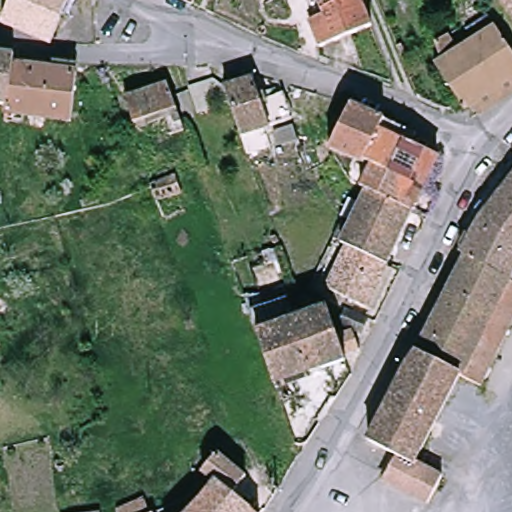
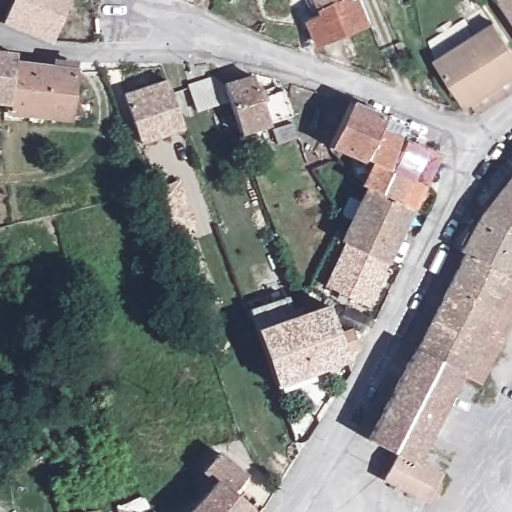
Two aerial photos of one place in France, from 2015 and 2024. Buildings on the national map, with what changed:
unchanged [(4,19),(12,0),(68,0),(52,42),(3,22),(4,19)]
unchanged [(321,7),(317,0),(361,0),(361,1),(370,27),(318,47),(316,41),(308,22),(313,20),(325,15),(321,7)]
unchanged [(512,0),(512,10),(505,0),(512,0)]
unchanged [(459,67),(454,58),(464,50),(470,58),(474,55),(467,44),(488,30),(512,65),(512,99),(470,127),(438,81),(459,67)]
unchanged [(17,54),(15,62),(10,105),(0,104),(0,52),(17,54)]
unchanged [(70,122),(8,115),(10,105),(15,62),(77,70),(70,122)]
unchanged [(245,136),(232,101),(201,112),(191,87),(215,79),(227,85),(254,77),(262,97),(285,89),(295,119),(245,136)]
unchanged [(136,121),(127,96),(169,79),(186,125),(172,131),(144,141),(136,121)]
unchanged [(366,168),(361,165),(333,152),(354,104),(383,118),(412,131),(421,135),(415,146),(441,158),(416,213),(390,267),(349,248),(340,245),(353,218),(366,189),(358,186),(366,168)]
unchanged [(301,140),(282,146),(277,133),(296,126),(301,140)]
unchanged [(466,251),(487,210),(512,177),(512,273),(511,275),(466,251)]
unchanged [(158,188),(183,179),(190,197),(165,207),(158,188)]
unchanged [(167,213),(191,203),(194,213),(171,223),(167,213)]
unchanged [(390,267),(369,309),(329,291),(349,248),(390,267)]
unchanged [(512,351),(512,353),(494,388),(489,385),(420,350),(466,251),(511,275),(504,288),(512,293),(512,307),(495,340),(512,351)]
unchanged [(511,275),(512,276),(512,293),(504,288),(511,275)]
unchanged [(360,348),(346,353),(349,360),(278,385),(252,311),(291,297),(298,317),(330,307),(339,334),(354,329),(360,348)]
unchanged [(512,307),(512,351),(495,340),(512,307)]
unchanged [(343,323),(350,308),(371,318),(364,333),(343,323)]
unchanged [(370,439),(412,361),(420,350),(489,385),(481,402),(465,393),(426,469),(399,455),(370,439)]
unchanged [(209,490),(217,479),(207,471),(222,453),(247,474),(232,492),(253,509),(251,512),(188,512),(209,490)]
unchanged [(386,479),(399,455),(426,469),(443,478),(430,503),(386,479)]
unchanged [(119,511),(143,500),(150,512),(120,512),(119,511)]
unchanged [(154,511),(154,512),(152,512),(154,511)]

